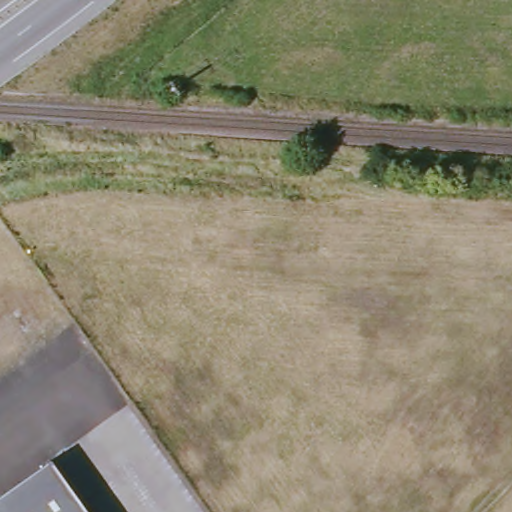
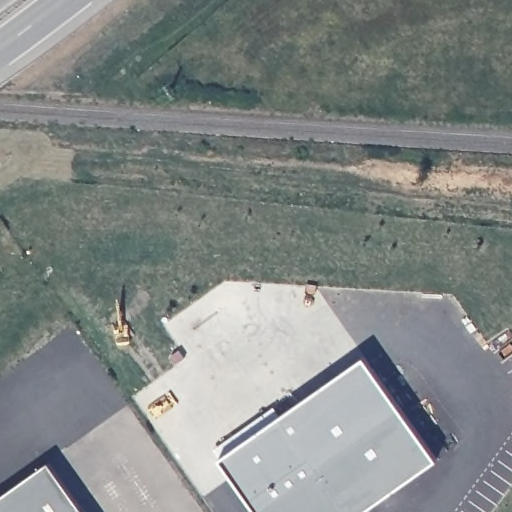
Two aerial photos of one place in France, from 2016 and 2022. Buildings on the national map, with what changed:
new [(359,512),(259,512),(221,458),(365,357),(436,459),(359,512)]
unchanged [(47,467),(80,512),(0,512),(0,499),(47,467)]

